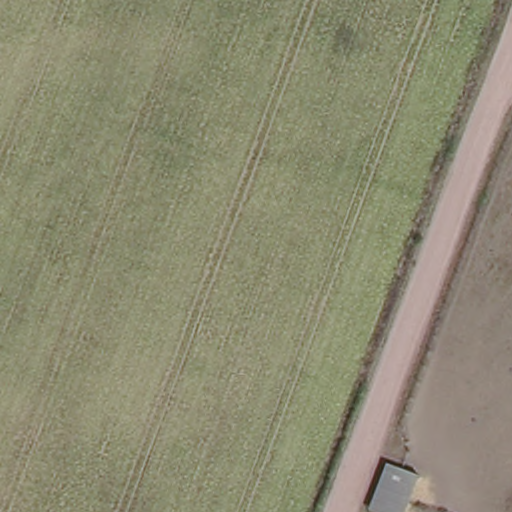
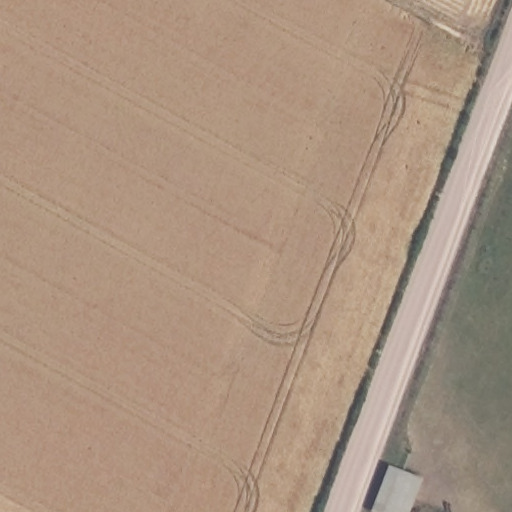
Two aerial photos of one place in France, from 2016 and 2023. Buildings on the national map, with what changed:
unchanged [(420,477),(406,512),(366,512),(384,465),(420,477)]

